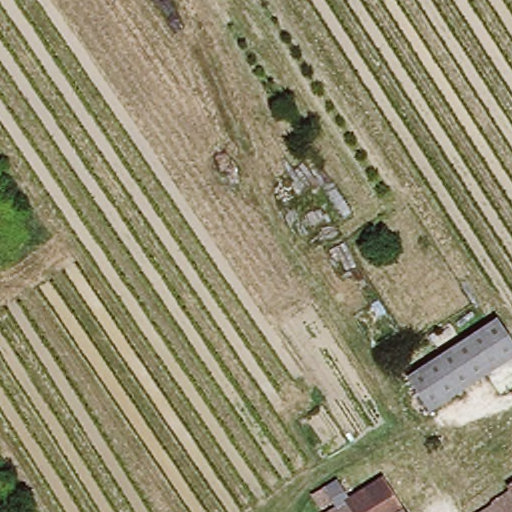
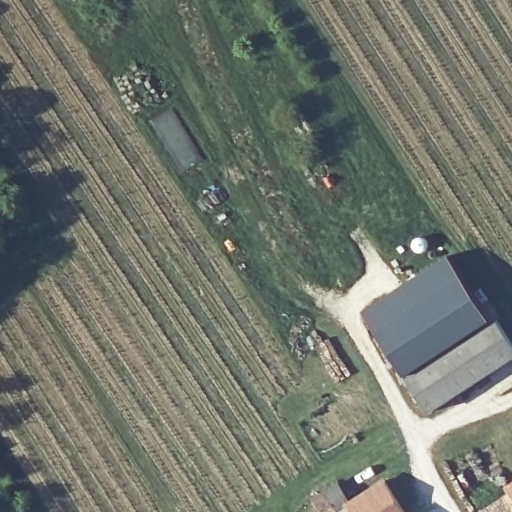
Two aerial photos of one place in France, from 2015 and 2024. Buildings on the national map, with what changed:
new [(492,321),(483,327),(407,374),(364,307),(449,253),(492,321)]
unchanged [(512,343),(512,355),(428,408),(407,374),(483,327),(496,319),(500,325),(512,343)]
unchanged [(325,507),(319,498),(330,492),(343,484),(353,499),(387,477),(407,507),(410,512),(344,512),(342,509),(336,500),(325,507)]
unchanged [(511,488),(512,488),(512,491),(511,488)]
unchanged [(512,494),(512,512),(483,512),(512,494)]
unchanged [(342,509),(344,512),(338,512),(342,509)]

